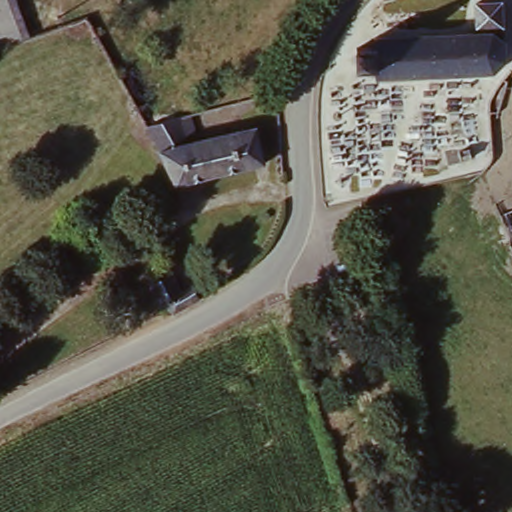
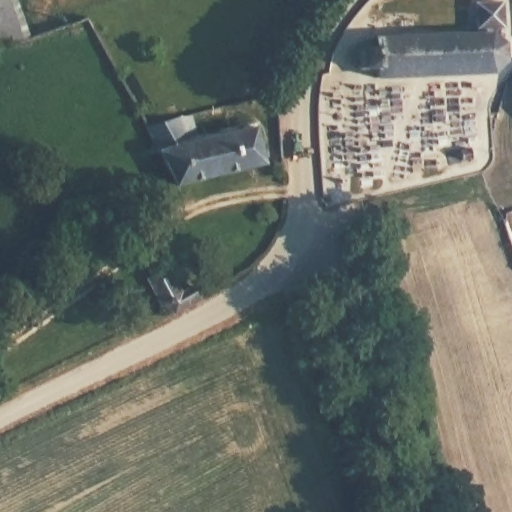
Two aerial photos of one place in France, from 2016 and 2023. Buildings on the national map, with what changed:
unchanged [(0,46),(0,0),(15,0),(28,36),(0,46)]
unchanged [(503,5),(504,31),(492,31),(493,38),(504,46),(506,65),(494,76),(377,81),(377,71),(359,72),(358,50),(376,49),(376,42),(478,38),(479,31),(476,29),(476,6),(503,5)]
unchanged [(184,113),(191,133),(183,136),(185,141),(251,126),(261,161),(174,185),(159,153),(145,124),(184,113)]
unchanged [(166,315),(162,306),(156,309),(141,281),(152,276),(155,281),(167,275),(176,293),(189,289),(196,303),(166,315)]

